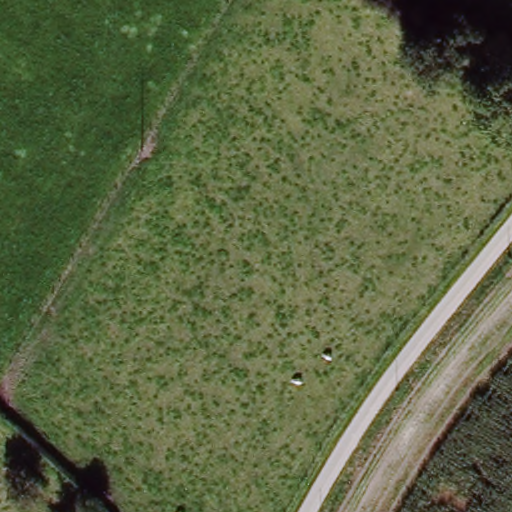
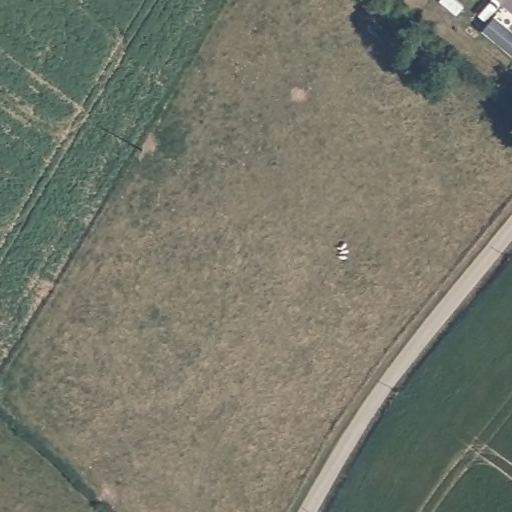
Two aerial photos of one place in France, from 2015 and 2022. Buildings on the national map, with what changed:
new [(480,30),(494,14),(512,29),(512,57),(480,30)]

